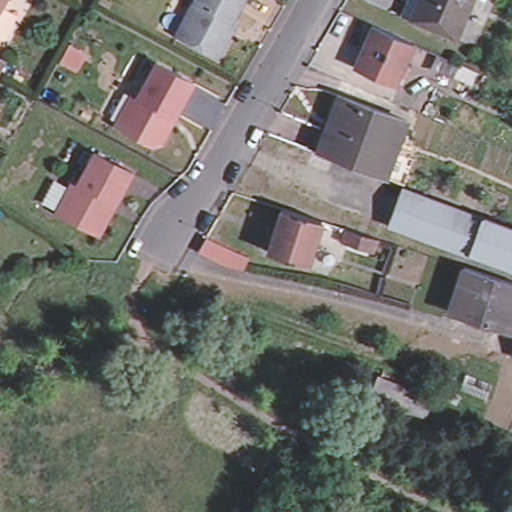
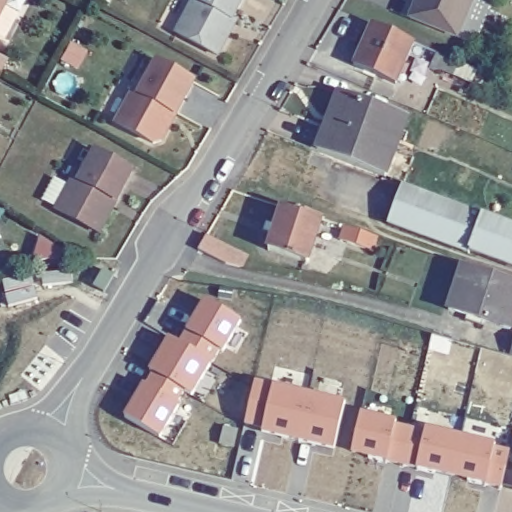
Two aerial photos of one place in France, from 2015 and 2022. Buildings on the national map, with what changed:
unchanged [(12,0),(0,23),(0,0),(12,0)]
unchanged [(217,56),(175,34),(194,0),(243,0),(232,20),(236,22),(230,34),(217,56)]
unchanged [(405,24),(415,0),(469,0),(452,43),(405,24)]
unchanged [(350,65),(367,24),(408,43),(390,84),(350,65)]
unchanged [(432,70),(439,54),(477,70),(471,83),(440,70),(432,70)]
unchanged [(162,141),(153,144),(115,124),(133,91),(138,94),(156,61),(193,81),(175,115),(168,128),(162,141)]
unchanged [(402,120),(380,177),(307,149),(316,126),(320,128),(333,94),(402,120)]
unchanged [(463,255),(312,198),(312,200),(290,192),(296,178),(302,164),(307,150),(327,158),(327,160),(512,229),(512,269),(465,252),(463,255)]
unchanged [(92,232),(55,211),(72,179),(78,182),(94,152),(131,172),(115,203),(98,234),(92,232)]
unchanged [(272,235),(266,233),(269,225),(275,227),(282,207),(322,220),(307,264),(267,250),(272,235)]
unchanged [(377,238),(373,252),(340,241),(345,227),(377,238)]
unchanged [(248,256),(242,268),(225,264),(197,250),(206,236),(234,249),(248,256)]
unchanged [(512,308),(505,331),(443,311),(458,266),(512,283),(512,308)]
new [(242,317),(193,393),(185,389),(160,432),(124,411),(168,334),(180,341),(206,295),(242,317)]
unchanged [(512,337),(512,356),(507,354),(512,337)]
new [(343,398),(335,447),(245,424),(255,376),(343,398)]
new [(511,445),(502,486),(352,450),(362,407),(511,445)]

